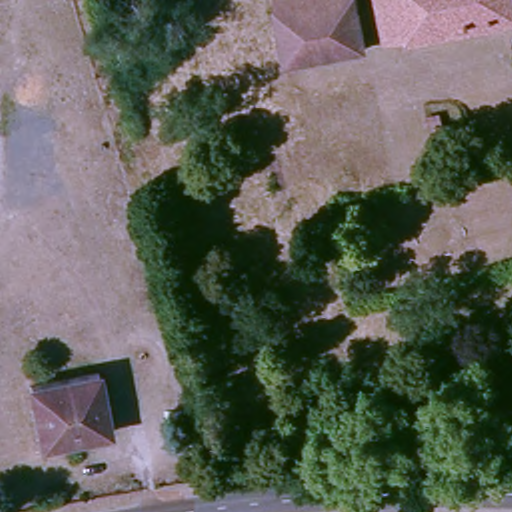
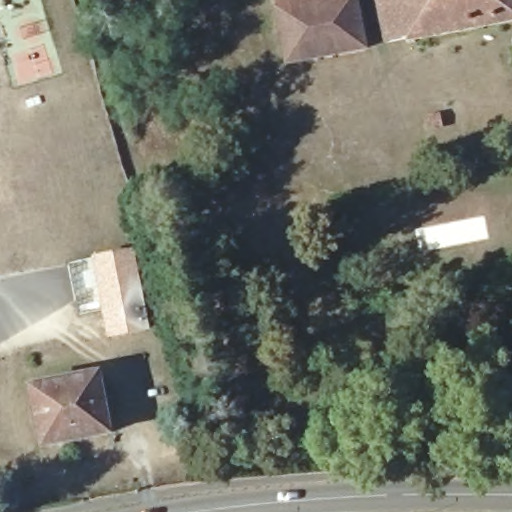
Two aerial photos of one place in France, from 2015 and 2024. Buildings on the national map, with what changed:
unchanged [(276,0),(307,0),(278,7),(276,0)]
unchanged [(291,62),(278,7),(307,0),(359,0),(368,45),(291,62)]
unchanged [(405,41),(404,38),(384,41),(375,0),(512,0),(512,19),(405,41)]
new [(92,257),(134,249),(150,332),(107,338),(92,257)]
unchanged [(40,436),(32,386),(99,373),(110,422),(40,436)]

